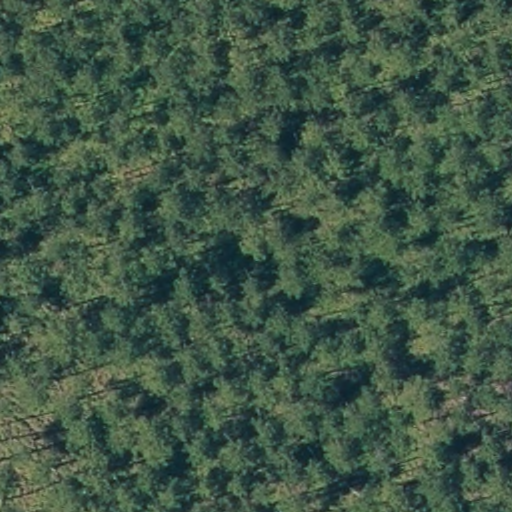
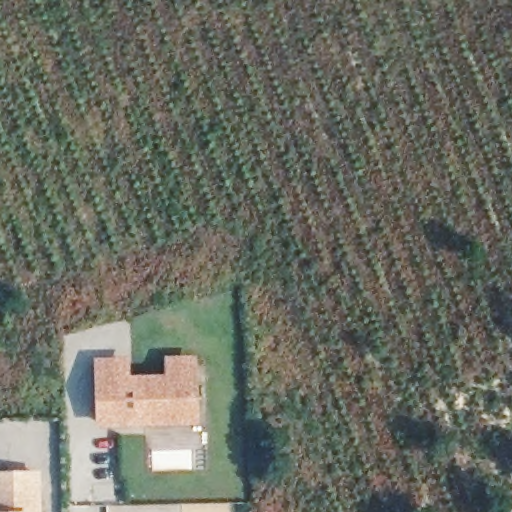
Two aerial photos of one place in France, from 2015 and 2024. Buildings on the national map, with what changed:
new [(126,390),(170,389),(169,371),(189,371),(190,388),(190,430),(99,432),(98,372),(125,372),(126,390)]
new [(36,482),(37,512),(0,512),(0,483),(36,482)]

